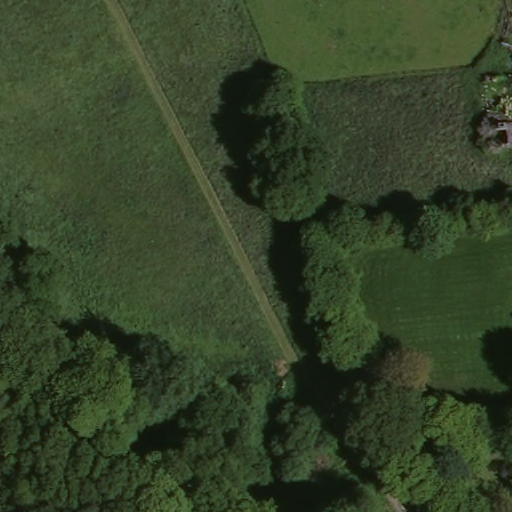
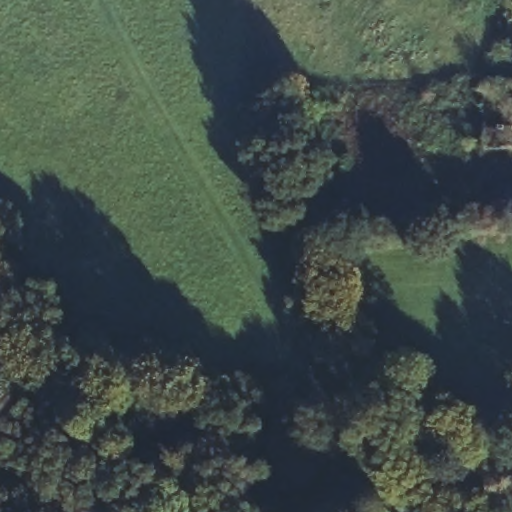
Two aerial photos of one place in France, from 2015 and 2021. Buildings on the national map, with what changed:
unchanged [(488,124),(491,74),(512,75),(512,145),(486,144),(488,124)]

